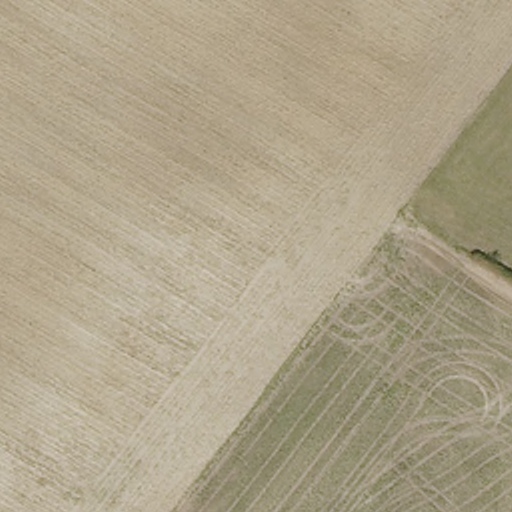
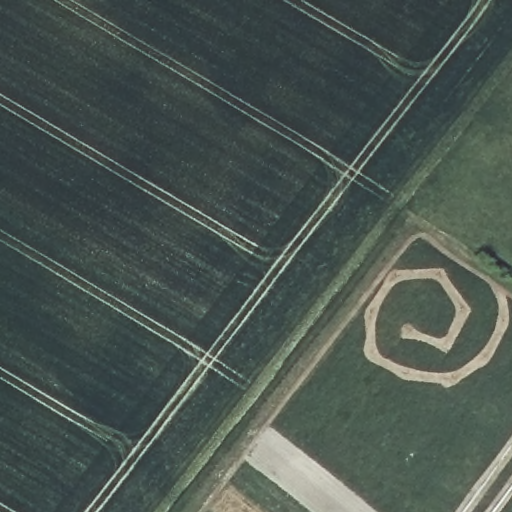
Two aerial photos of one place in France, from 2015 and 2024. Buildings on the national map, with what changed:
[]

